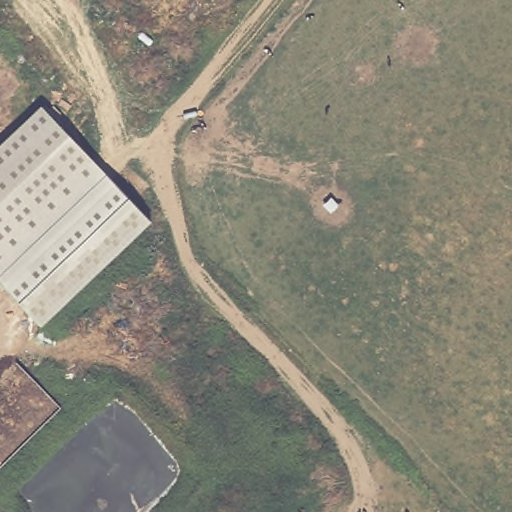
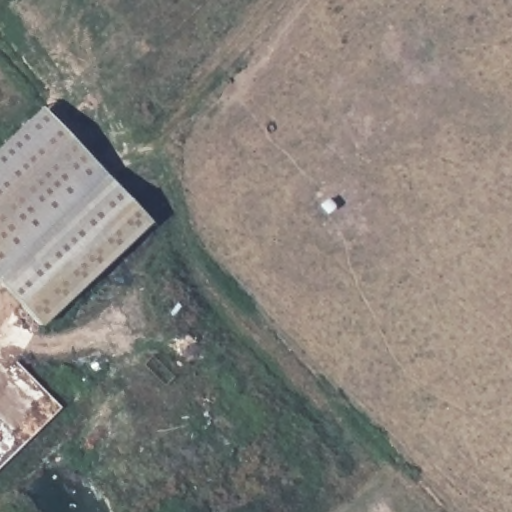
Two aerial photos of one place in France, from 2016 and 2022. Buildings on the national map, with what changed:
unchanged [(46,113),(96,165),(99,168),(67,199),(0,263),(0,156),(23,134),(46,113)]
unchanged [(0,280),(0,263),(67,199),(99,168),(153,223),(43,328),(0,280)]

